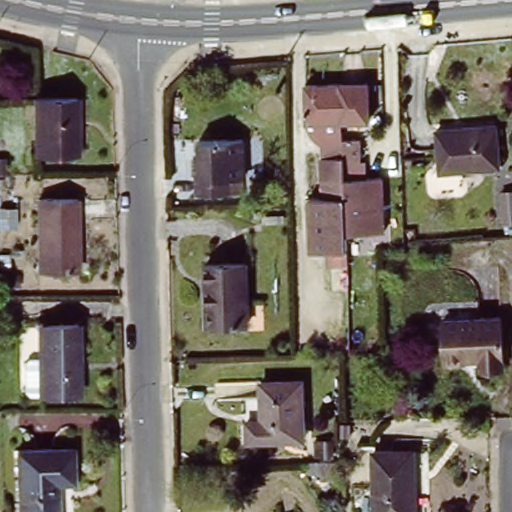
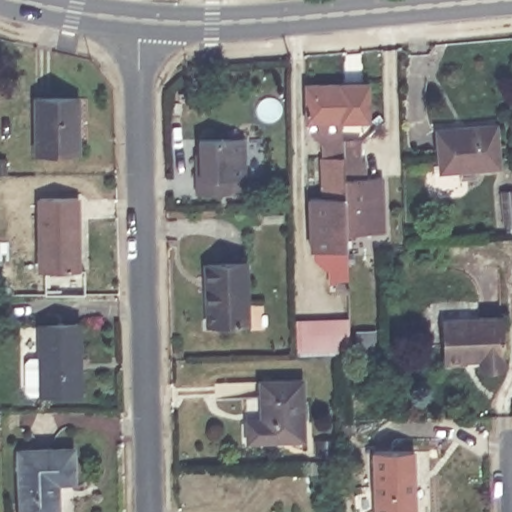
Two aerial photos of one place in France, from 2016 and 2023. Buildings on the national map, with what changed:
unchanged [(338,81),(339,119),(304,120),(303,82),(338,81)]
unchanged [(79,97),(78,152),(36,151),(38,96),(79,97)]
unchanged [(498,120),(501,161),(442,165),(439,124),(498,120)]
unchanged [(243,134),(244,175),(233,175),(234,191),(197,194),(196,156),(201,156),(201,136),(243,134)]
unchanged [(339,180),(376,180),(378,235),(340,235),(341,250),(316,251),(316,182),(326,181),(326,159),(339,158),(339,180)]
unchanged [(512,220),(503,221),(502,191),(512,191),(512,220)]
unchanged [(75,196),(75,270),(37,270),(37,196),(75,196)]
unchanged [(248,262),(251,321),(211,323),(209,263),(248,262)]
unchanged [(473,363),(473,357),(458,358),(458,360),(438,361),(437,320),(494,318),(496,363),(473,363)]
new [(346,321),(347,355),(295,356),(294,323),(346,321)]
unchanged [(40,392),(26,392),(26,357),(40,357),(40,325),(80,325),(80,392),(40,392)]
unchanged [(243,413),(259,413),(258,376),(300,375),(301,431),(244,433),(243,413)]
unchanged [(412,445),(412,511),(371,511),(371,445),(412,445)]
unchanged [(74,447),(74,479),(58,480),(58,512),(20,512),(18,448),(74,447)]

